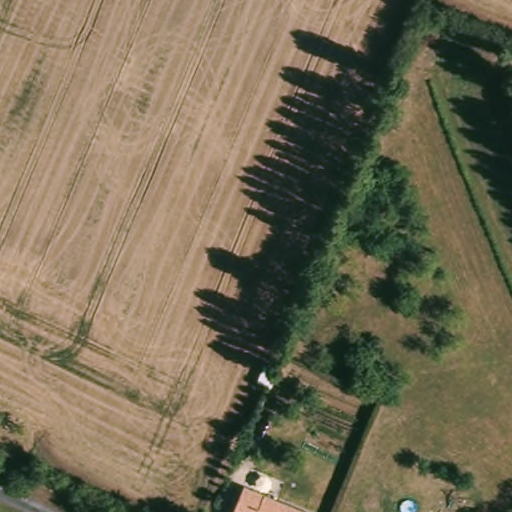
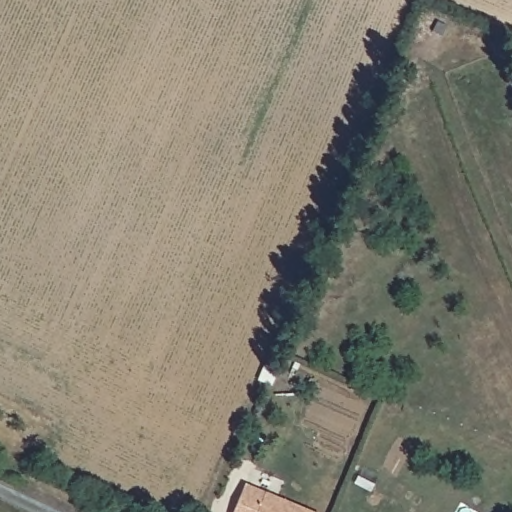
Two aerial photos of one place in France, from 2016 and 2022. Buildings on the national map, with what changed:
unchanged [(306,512),(232,512),(243,485),(306,512)]

